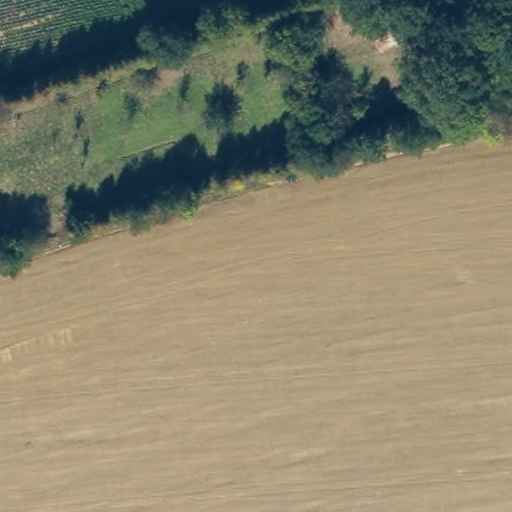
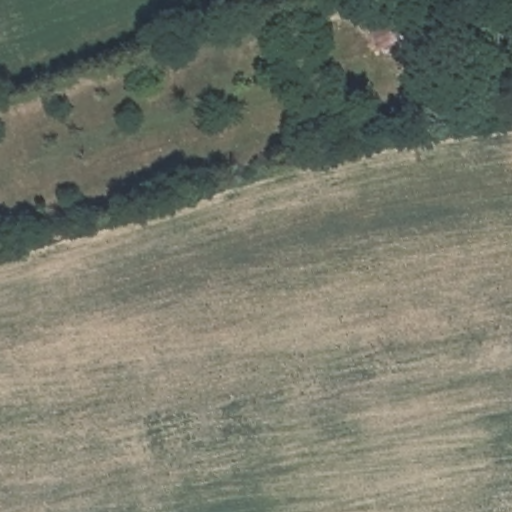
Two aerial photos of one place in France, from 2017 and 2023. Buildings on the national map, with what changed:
unchanged [(375,16),(396,7),(413,35),(389,46),(375,16)]

